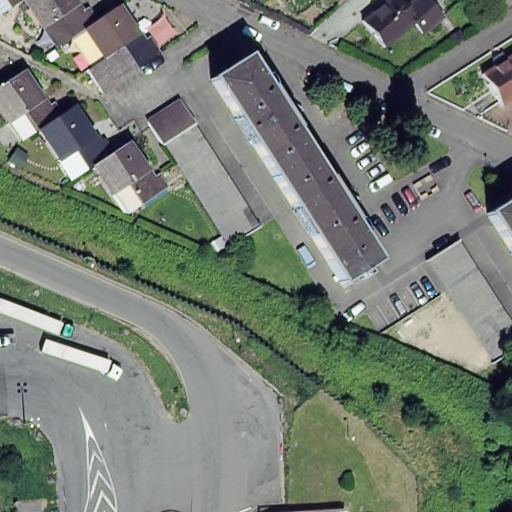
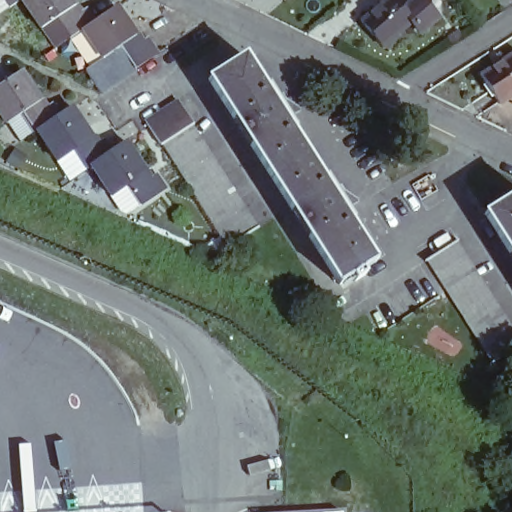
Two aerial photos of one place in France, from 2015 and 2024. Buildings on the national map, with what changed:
unchanged [(0,14),(0,0),(20,0),(9,8),(0,14)]
unchanged [(80,13),(86,9),(94,21),(116,6),(141,42),(147,38),(158,54),(143,64),(135,69),(124,76),(113,85),(101,93),(85,70),(97,61),(103,58),(83,29),(70,38),(55,48),(41,28),(22,0),(72,0),(75,6),(80,13)]
unchanged [(281,0),(289,0),(284,4),(281,0)]
unchanged [(439,18),(421,33),(412,23),(383,47),(361,21),(386,0),(396,0),(403,9),(413,0),(423,0),(431,8),(439,18)]
unchanged [(485,75),(499,66),(496,61),(506,55),(509,60),(512,57),(512,100),(506,105),(485,75)]
unchanged [(244,56),(264,88),(268,86),(276,99),(282,95),(281,94),(283,94),(286,99),(286,100),(297,110),(287,116),(294,128),(291,130),(307,155),(272,177),(209,79),(244,56)]
unchanged [(21,71),(41,100),(46,108),(51,103),(60,116),(72,108),(91,137),(96,144),(103,140),(111,153),(126,143),(146,172),(151,179),(156,175),(165,187),(156,194),(141,204),(128,213),(123,210),(112,195),(92,165),(86,170),(78,157),(73,150),(58,160),(38,131),(35,133),(35,132),(20,141),(8,123),(7,124),(0,113),(0,85),(21,71)]
unchanged [(163,139),(161,141),(161,140),(149,121),(146,117),(166,104),(179,96),(193,118),(194,119),(190,122),(198,135),(206,147),(214,160),(222,173),(230,185),(238,198),(246,211),(254,223),(259,221),(259,222),(226,243),(226,242),(225,242),(217,247),(214,249),(203,242),(211,238),(213,236),(219,232),(222,231),(220,227),(212,215),(204,202),(196,189),(188,177),(180,164),(172,151),(163,139)]
unchanged [(389,120),(393,121),(392,124),(388,123),(389,120)]
unchanged [(355,280),(352,276),(340,283),(272,177),(307,155),(323,179),(326,177),(334,190),(340,186),(339,185),(341,185),(344,190),(344,191),(356,201),(346,207),(353,219),(349,222),(373,258),(375,261),(361,270),(364,275),(355,280)]
unchanged [(512,254),(486,214),(512,197),(512,254)]
unchanged [(496,363),(498,361),(489,349),(482,336),(474,323),(466,311),(458,298),(449,286),(441,273),(433,260),(431,262),(430,261),(463,239),(464,240),(459,243),(468,256),(476,269),(484,281),(492,294),(500,307),(508,319),(512,325),(512,354),(496,364),(496,363)]
unchanged [(261,505),(340,502),(340,512),(262,512),(261,505)]

